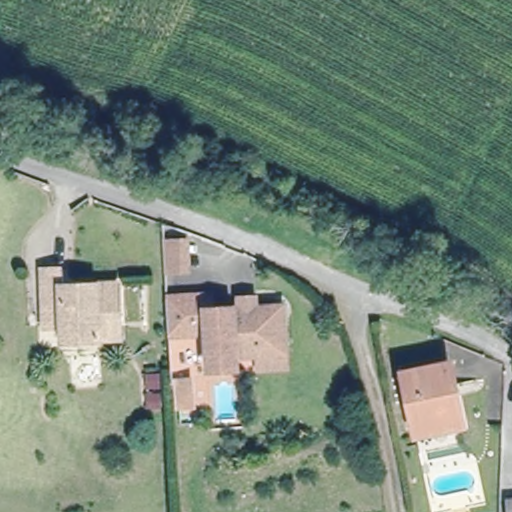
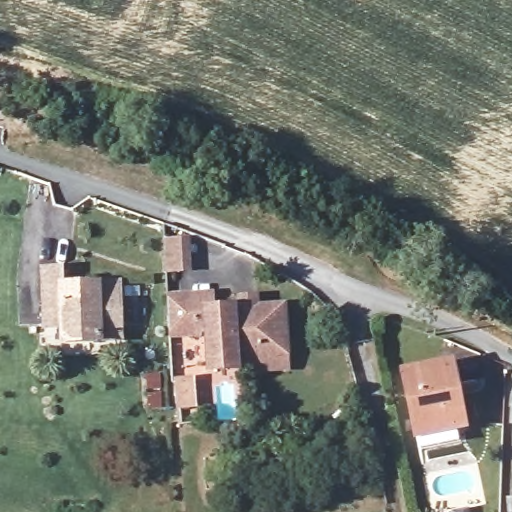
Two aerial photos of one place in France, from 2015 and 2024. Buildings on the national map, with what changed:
unchanged [(187,240),(189,270),(171,271),(170,271),(169,242),(187,240)]
unchanged [(104,335),(67,337),(66,323),(48,324),(46,324),(45,268),(54,268),(64,268),(65,284),(119,282),(121,318),(122,335),(104,335)]
unchanged [(203,335),(196,335),(170,337),(167,298),(207,295),(203,335)]
unchanged [(264,372),(264,357),(239,358),(238,369),(210,371),(209,335),(203,335),(207,295),(214,295),(214,310),(285,307),(286,356),(287,372),(264,372)]
unchanged [(459,427),(415,436),(402,374),(446,366),(459,427)]
unchanged [(197,382),(199,406),(180,408),(179,383),(197,382)]
unchanged [(511,500),(512,500),(512,510),(511,500)]

